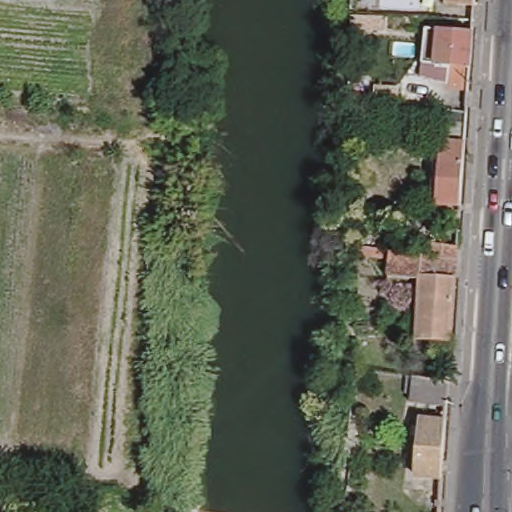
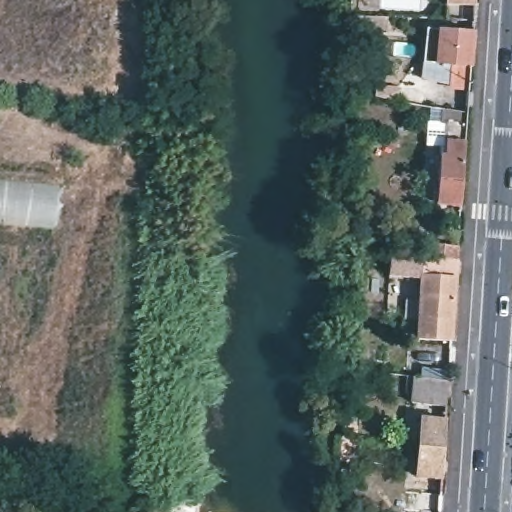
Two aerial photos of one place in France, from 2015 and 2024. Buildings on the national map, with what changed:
unchanged [(455,0),(485,0),(485,5),(455,3),(455,0)]
unchanged [(386,12),(384,29),(345,26),(346,10),(386,12)]
unchanged [(453,65),(440,63),(429,62),(431,30),(442,30),(478,32),(474,91),(451,89),(453,65)]
unchanged [(443,207),(446,160),(452,161),(454,126),(472,127),(467,209),(443,207)]
new [(57,228),(0,223),(0,180),(61,186),(57,228)]
unchanged [(358,242),(367,242),(367,251),(358,250),(358,242)]
unchanged [(427,277),(396,275),(397,253),(436,257),(436,243),(464,245),(463,258),(458,339),(423,337),(427,277)]
unchanged [(412,403),(414,377),(450,380),(448,406),(412,403)]
unchanged [(449,476),(422,473),(426,417),(453,419),(449,476)]

